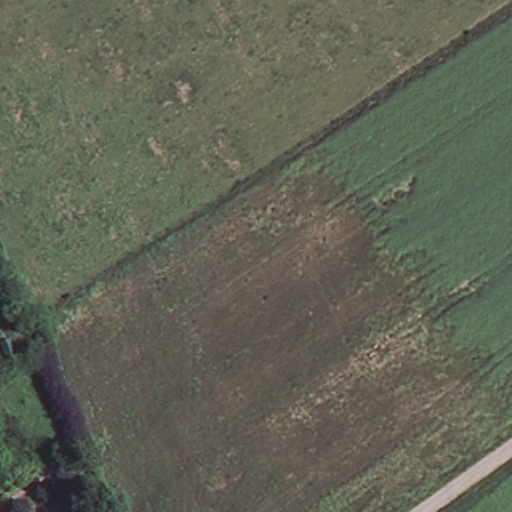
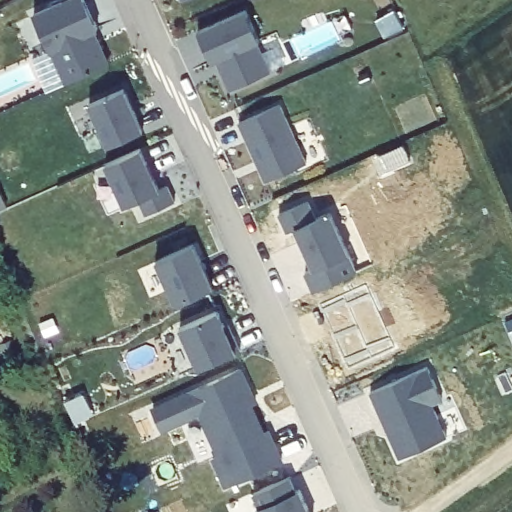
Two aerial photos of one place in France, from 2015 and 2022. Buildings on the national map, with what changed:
new [(49,51),(34,11),(60,0),(86,0),(99,30),(95,31),(110,61),(66,80),(53,50),(49,51)]
new [(218,58),(211,62),(198,30),(246,10),(260,42),(272,70),(229,90),(218,58)]
new [(90,103),(125,88),(143,130),(107,145),(90,103)]
new [(240,121),(280,104),(307,162),(265,181),(240,121)]
new [(140,196),(124,205),(105,163),(142,147),(160,189),(170,185),(176,200),(145,214),(140,196)]
new [(305,271),(312,268),(295,227),(286,231),(278,214),(308,200),(318,217),(331,212),(350,253),(357,270),(313,290),(305,271)]
new [(157,259),(195,244),(213,287),(175,304),(157,259)]
new [(366,285),(395,347),(349,367),(320,304),(366,285)]
new [(180,325),(219,310),(225,325),(230,322),(241,349),(236,350),(198,367),(180,325)]
new [(225,486),(210,453),(217,451),(201,414),(162,432),(151,405),(242,366),(258,402),(253,403),(267,432),(271,430),(285,460),(225,486)]
new [(371,390),(427,366),(442,400),(432,403),(447,436),(400,457),(371,390)]
new [(256,506),(259,505),(252,491),(290,475),(297,490),(301,488),(310,512),(258,512),(256,506)]

